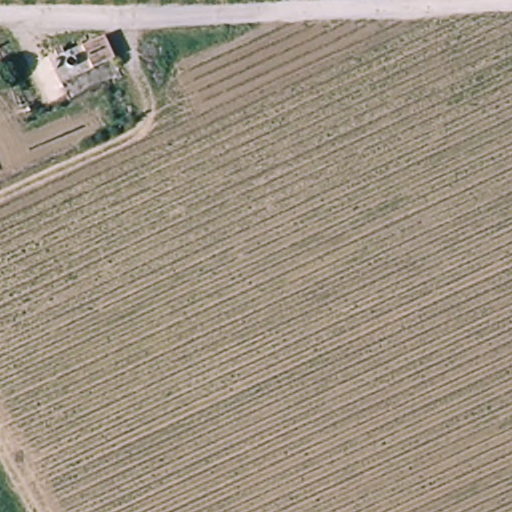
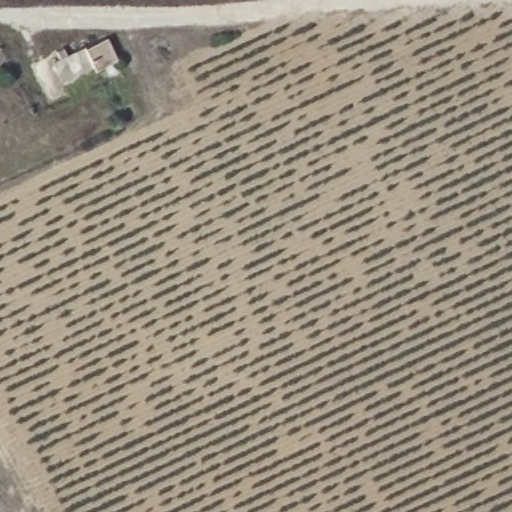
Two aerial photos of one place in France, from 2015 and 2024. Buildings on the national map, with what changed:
unchanged [(106,47),(117,70),(63,94),(52,72),(58,69),(55,61),(62,57),(66,66),(106,47)]

